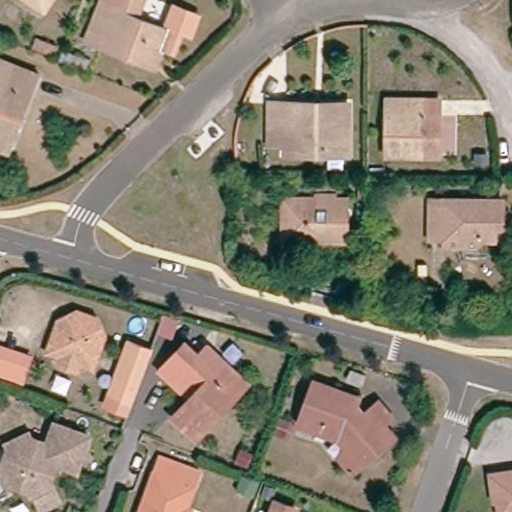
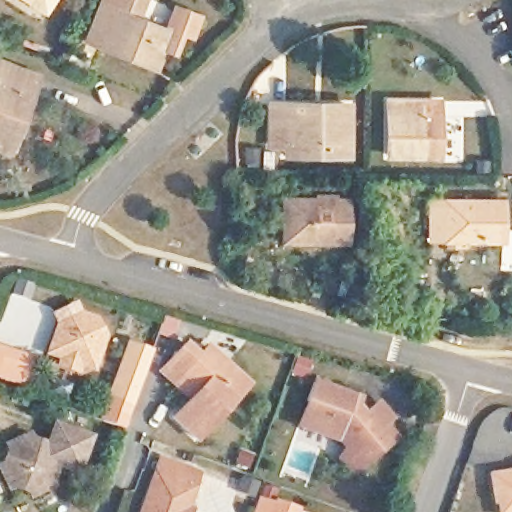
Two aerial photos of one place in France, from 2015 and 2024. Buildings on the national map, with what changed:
unchanged [(21,0),(53,0),(45,15),(21,0)]
unchanged [(160,36),(169,13),(192,22),(185,40),(176,37),(169,57),(158,53),(150,73),(83,47),(101,0),(138,0),(138,1),(129,24),(160,36)]
unchanged [(0,147),(0,77),(35,91),(24,127),(15,153),(1,148),(0,147)]
unchanged [(294,145),(276,143),(280,108),(353,113),(350,155),(339,154),(295,153),(294,145)]
unchanged [(432,164),(387,163),(391,108),(435,110),(432,164)]
unchanged [(282,228),(282,209),(307,208),(306,202),(310,197),(342,198),(342,217),(335,218),(335,222),(341,223),(342,252),(327,251),(295,251),(282,251),(282,228)]
unchanged [(455,260),(455,248),(436,248),(440,207),(512,208),(508,251),(487,250),(487,263),(455,260)]
unchanged [(55,366),(59,357),(49,334),(58,315),(78,306),(96,313),(101,334),(95,351),(75,361),(70,374),(55,366)]
unchanged [(125,426),(104,418),(104,417),(134,338),(155,347),(135,398),(125,426)]
unchanged [(21,381),(0,372),(0,351),(2,345),(31,357),(21,381)]
unchanged [(210,453),(180,433),(194,412),(165,391),(190,358),(205,368),(211,362),(250,387),(210,453)]
unchanged [(340,461),(341,457),(343,452),(340,445),(310,432),(316,414),(310,411),(320,392),(363,411),(364,421),(382,412),(390,427),(383,432),(390,445),(365,462),(348,473),(340,461)]
unchanged [(54,450),(48,448),(55,431),(60,434),(82,442),(70,476),(60,473),(51,498),(55,511),(50,512),(35,512),(32,503),(54,450)]
unchanged [(32,503),(14,496),(5,477),(14,452),(24,445),(37,444),(48,448),(54,450),(32,503)]
unchanged [(157,460),(184,469),(200,474),(185,509),(193,512),(139,512),(151,476),(157,460)]
unchanged [(249,472),(263,478),(257,494),(240,487),(245,471),(249,472)]
unchanged [(487,477),(512,474),(512,512),(497,512),(489,506),(487,477)]
unchanged [(301,510),(301,512),(278,512),(282,501),(301,510)]

